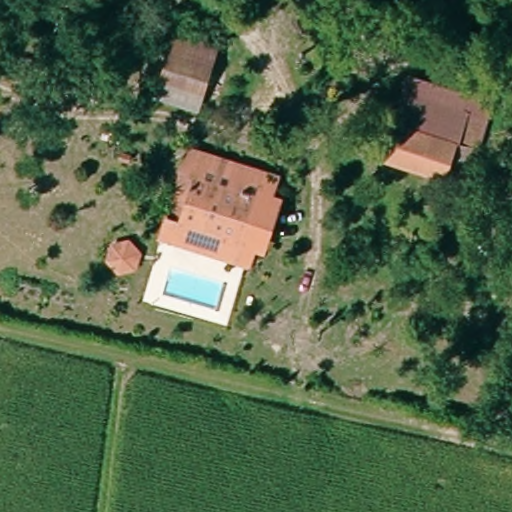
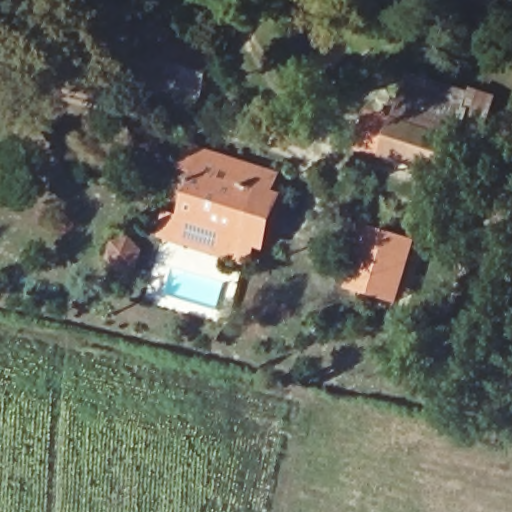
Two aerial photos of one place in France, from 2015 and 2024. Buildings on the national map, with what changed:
unchanged [(163,95),(181,33),(220,44),(203,106),(163,95)]
unchanged [(475,166),(452,162),(447,178),(379,159),(407,72),(468,93),(469,88),(496,96),(475,166)]
unchanged [(150,160),(136,154),(140,141),(155,146),(150,160)]
unchanged [(202,175),(209,153),(273,173),(266,195),(202,175)]
unchanged [(202,175),(266,195),(250,243),(243,262),(214,252),(181,241),(186,223),(202,175)]
new [(416,242),(398,304),(341,289),(360,224),(416,242)]

